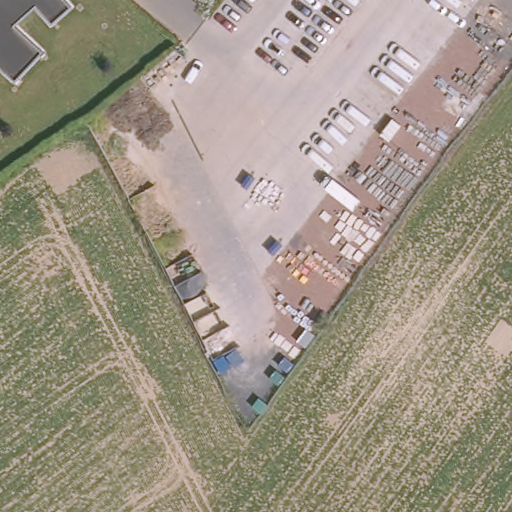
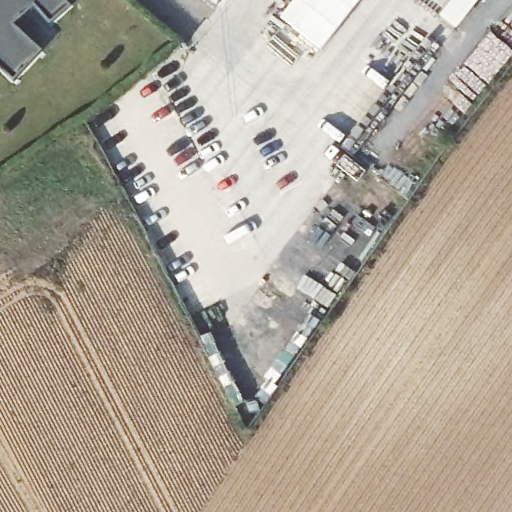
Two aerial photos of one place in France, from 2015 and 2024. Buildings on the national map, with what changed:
unchanged [(72,10),(50,30),(31,10),(14,28),(42,54),(13,85),(0,72),(0,0),(63,0),(72,10)]
new [(295,0),(361,0),(322,50),(281,18),(295,0)]
new [(458,26),(445,16),(458,0),(478,0),(458,26)]

